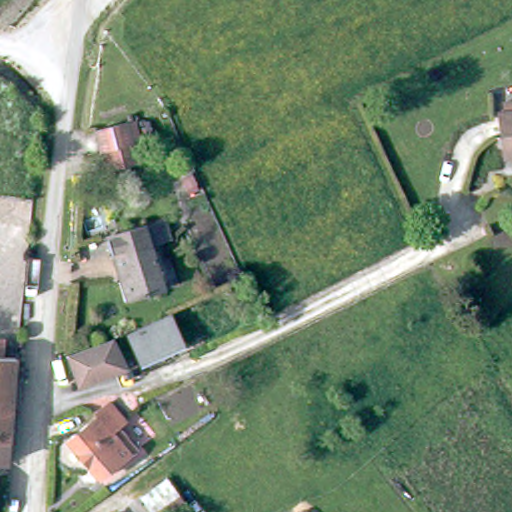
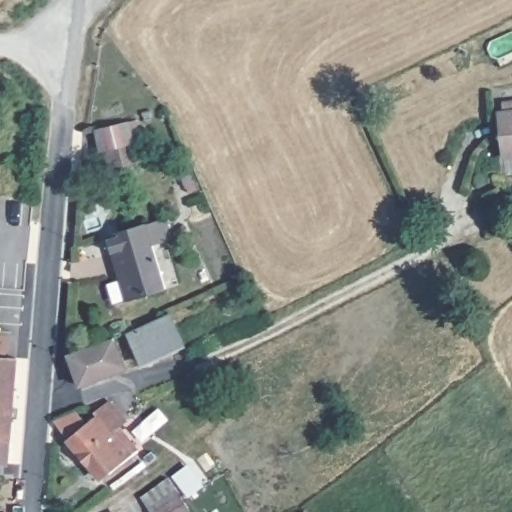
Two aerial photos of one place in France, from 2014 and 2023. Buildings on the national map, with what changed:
unchanged [(503,157),(497,115),(504,114),(502,103),(512,101),(512,156),(503,157)]
unchanged [(110,169),(106,150),(102,151),(96,130),(135,121),(138,136),(132,137),(139,162),(110,169)]
unchanged [(182,178),(191,174),(199,189),(190,194),(182,178)]
unchanged [(113,256),(114,256),(109,237),(166,219),(172,239),(152,245),(166,288),(127,300),(113,256)]
unchanged [(146,363),(133,334),(176,315),(189,344),(146,363)]
unchanged [(10,357),(21,359),(17,415),(0,413),(0,338),(11,339),(10,357)]
unchanged [(132,369),(85,386),(72,354),(88,349),(119,338),(132,369)]
unchanged [(103,423),(100,419),(116,407),(132,426),(119,438),(127,448),(132,443),(142,454),(105,484),(73,445),(92,430),(103,423)]
unchanged [(12,464),(0,462),(0,413),(17,415),(12,464)]
unchanged [(167,478),(188,510),(185,512),(152,512),(142,497),(167,478)]

